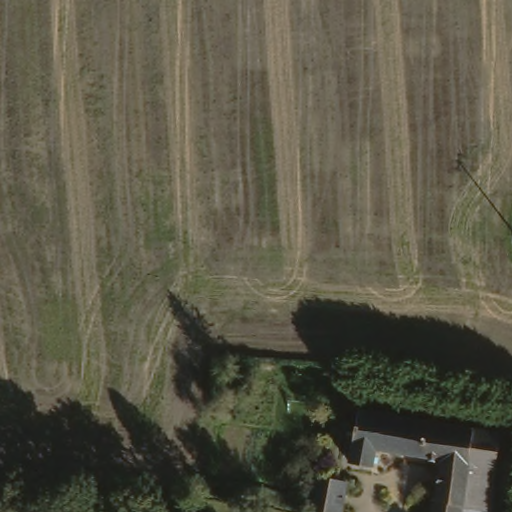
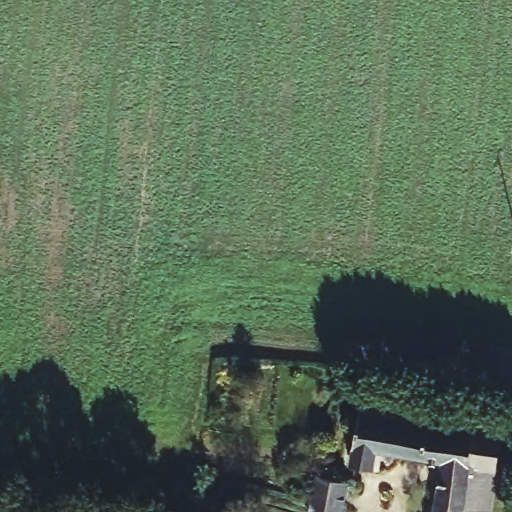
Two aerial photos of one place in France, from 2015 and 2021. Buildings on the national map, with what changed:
unchanged [(373,450),(370,468),(346,462),(353,410),(496,432),(492,467),(437,460),(373,450)]
unchanged [(486,512),(429,512),(437,460),(492,467),(486,512)]
unchanged [(315,473),(348,481),(343,512),(308,512),(315,473)]

